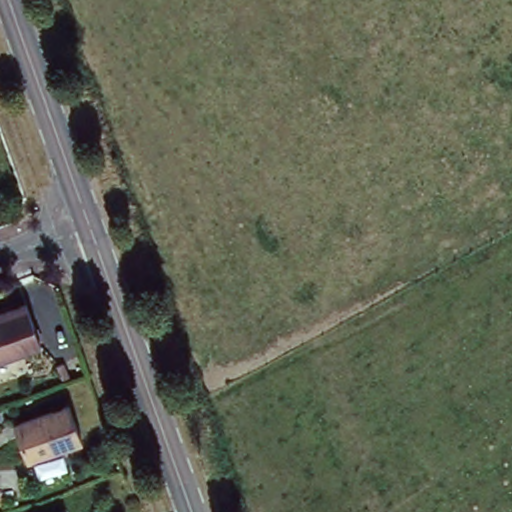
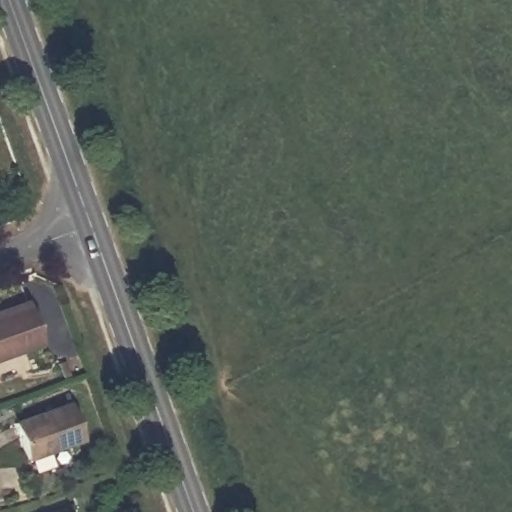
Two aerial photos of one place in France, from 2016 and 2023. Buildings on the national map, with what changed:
unchanged [(38,349),(0,359),(0,309),(23,302),(38,349)]
unchanged [(67,403),(80,443),(25,461),(11,421),(67,403)]

